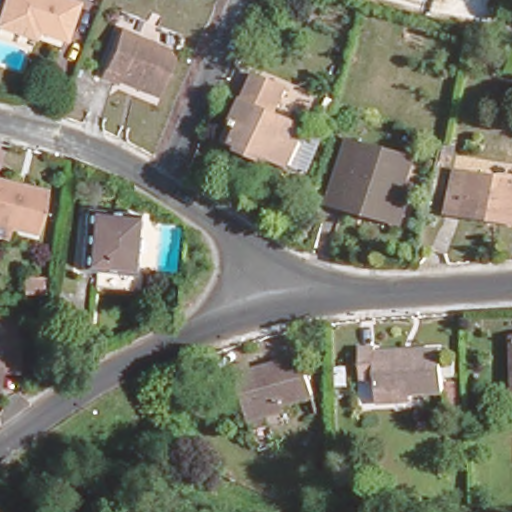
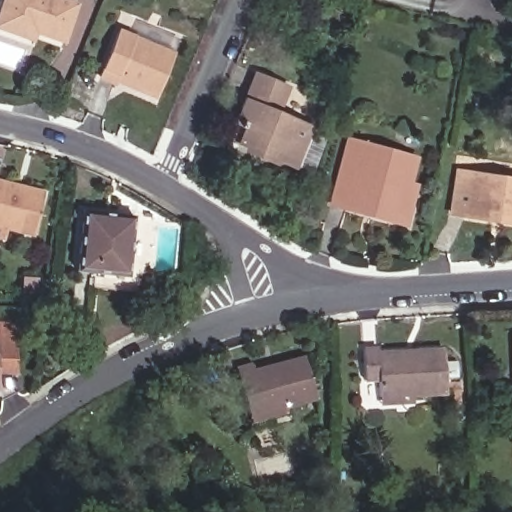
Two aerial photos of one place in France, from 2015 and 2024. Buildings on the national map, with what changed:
unchanged [(20,36),(2,30),(13,0),(54,0),(80,9),(68,44),(39,34),(36,42),(20,36)]
unchanged [(179,57),(160,104),(119,87),(118,90),(102,83),(123,33),(179,57)]
unchanged [(239,127),(260,78),(291,92),(280,118),(313,131),(296,171),(242,149),(232,144),(239,127)]
unchanged [(350,161),(354,146),(416,164),(409,189),(415,191),(405,225),(353,211),(337,206),(350,161)]
unchanged [(0,239),(0,181),(41,192),(30,234),(6,228),(4,237),(3,239),(0,239)]
unchanged [(461,193),(463,181),(512,189),(512,231),(476,225),(456,222),(461,193)]
unchanged [(134,227),(128,281),(82,277),(88,222),(134,227)]
unchanged [(39,276),(37,292),(20,290),(22,275),(39,276)]
unchanged [(0,342),(0,325),(20,325),(20,342),(19,374),(0,374),(0,342)]
unchanged [(380,356),(381,362),(447,358),(449,403),(416,405),(416,413),(383,415),(382,388),(367,389),(366,357),(380,356)]
unchanged [(254,374),(256,380),(308,365),(320,407),(254,426),(240,377),(254,374)]

